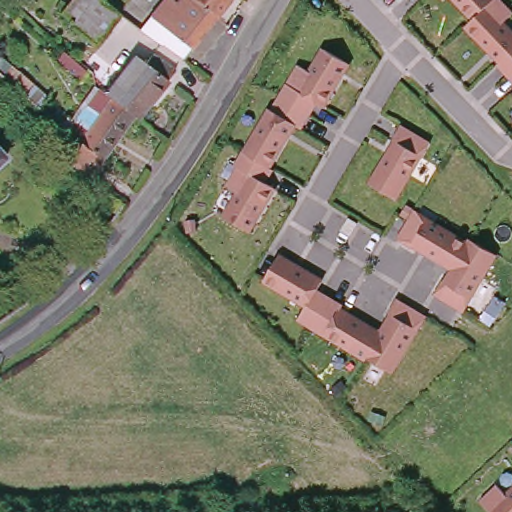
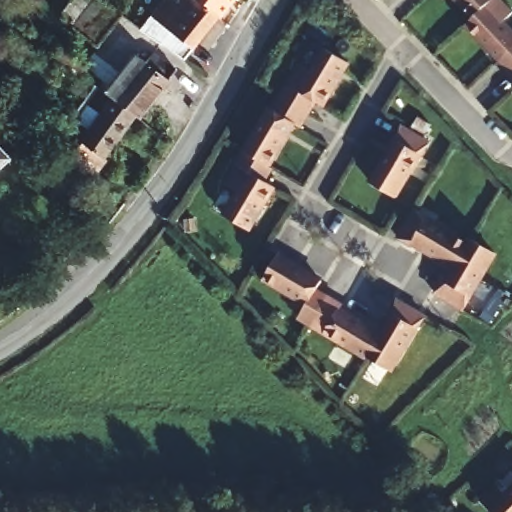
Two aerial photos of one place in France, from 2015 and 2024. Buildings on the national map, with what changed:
unchanged [(99,0),(112,11),(86,45),(62,25),(81,0),(99,0)]
unchanged [(155,0),(164,7),(151,23),(135,10),(143,0),(155,0)]
unchanged [(185,0),(205,0),(221,13),(189,53),(161,32),(185,0)]
unchanged [(205,0),(232,0),(221,13),(205,0)]
unchanged [(477,20),(458,0),(496,0),(496,1),(477,20)]
unchanged [(505,62),(470,27),(477,20),(496,1),(497,0),(503,0),(512,10),(512,18),(505,25),(512,31),(512,75),(502,65),(505,62)]
unchanged [(102,89),(104,86),(131,54),(141,62),(149,51),(171,69),(135,116),(102,89)]
unchanged [(290,87),(288,86),(300,66),(312,74),(326,51),(349,64),(323,107),(316,102),(308,116),(282,100),(290,87)]
unchanged [(90,179),(65,158),(80,139),(70,129),(102,89),(135,116),(101,156),(106,160),(90,179)]
unchanged [(308,116),(300,128),(295,125),(270,167),(248,154),(272,112),(275,113),(282,100),(308,116)]
unchanged [(396,142),(395,141),(403,127),(430,142),(421,156),(420,155),(395,197),(371,184),(396,142)]
unchanged [(0,164),(0,154),(5,159),(0,164)]
unchanged [(273,169),(265,182),(276,187),(250,231),(228,217),(241,194),(228,187),(248,154),(270,167),(273,169)]
unchanged [(456,270),(416,245),(414,247),(400,240),(417,212),(430,220),(430,222),(470,247),(456,270)]
unchanged [(437,295),(445,282),(448,283),(456,270),(470,247),(473,241),(496,255),(471,297),(473,298),(465,312),(437,295)]
unchanged [(302,319),(310,306),(266,281),(280,257),(323,283),(317,293),(330,301),(315,327),(302,319)]
unchanged [(330,301),(343,308),(342,311),(383,335),(369,358),(315,327),(330,301)]
unchanged [(395,316),(391,315),(400,301),(427,317),(420,331),(418,330),(392,372),(369,358),(383,335),(395,316)]
unchanged [(481,501),(498,486),(508,497),(512,493),(512,512),(492,512),(481,501)]

